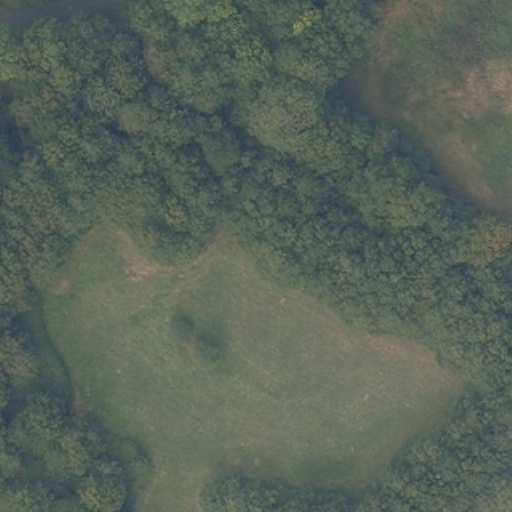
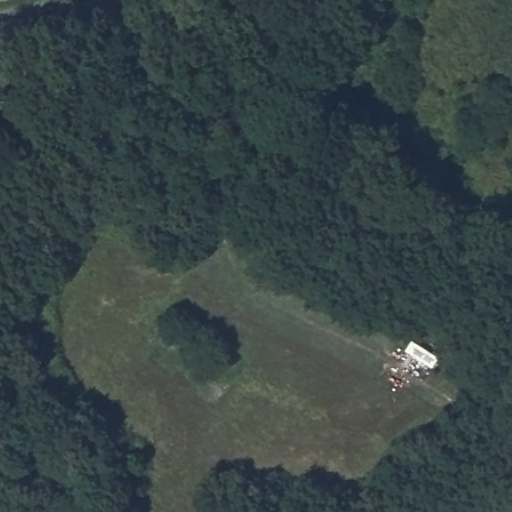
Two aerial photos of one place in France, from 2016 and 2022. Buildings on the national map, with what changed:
[]

